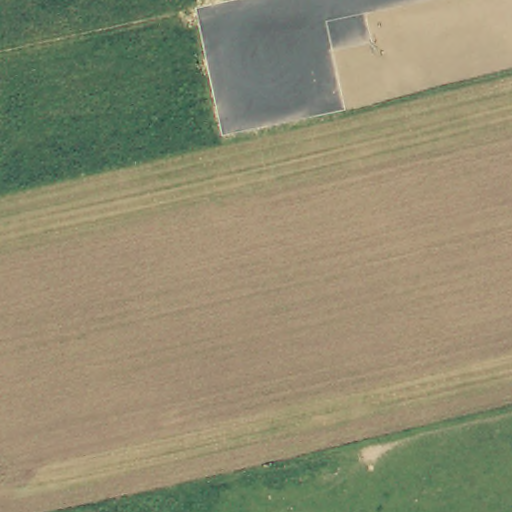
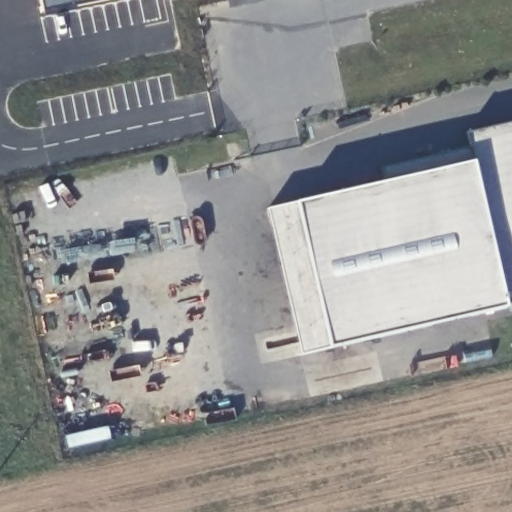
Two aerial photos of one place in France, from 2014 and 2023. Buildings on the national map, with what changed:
new [(506,308),(330,349),(301,356),(267,211),(296,203),(387,182),(378,168),(467,148),(464,131),(512,122),(512,306),(506,308)]

